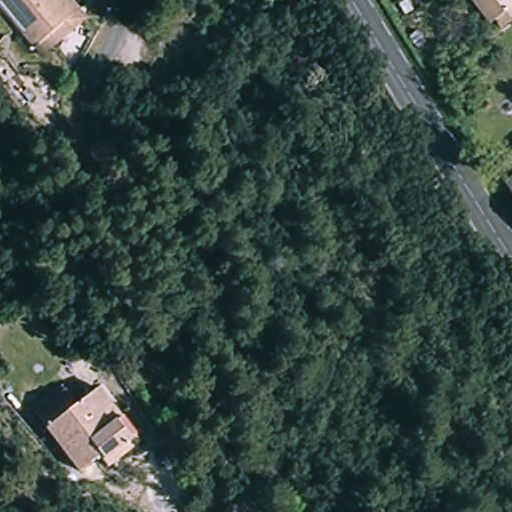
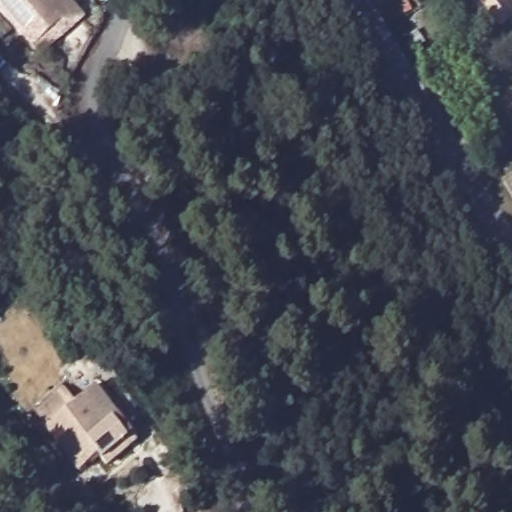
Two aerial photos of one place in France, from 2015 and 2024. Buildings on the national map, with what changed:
unchanged [(86,13),(42,48),(35,40),(0,0),(75,0),(86,13)]
unchanged [(503,13),(489,23),(471,0),(492,0),(503,13)]
unchanged [(512,172),(512,193),(503,178),(512,172)]
unchanged [(95,449),(76,464),(32,406),(61,383),(73,398),(94,382),(105,397),(134,436),(126,442),(103,459),(95,449)]

